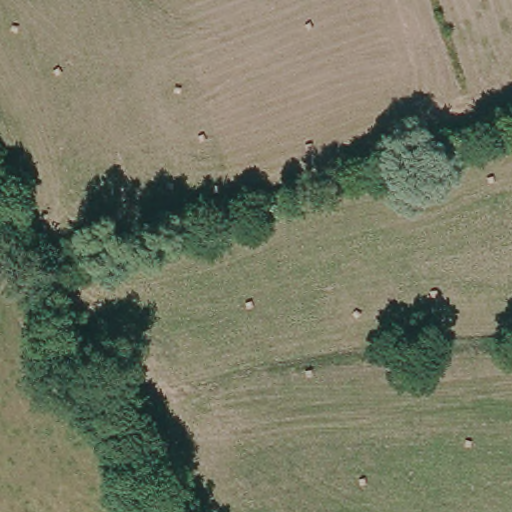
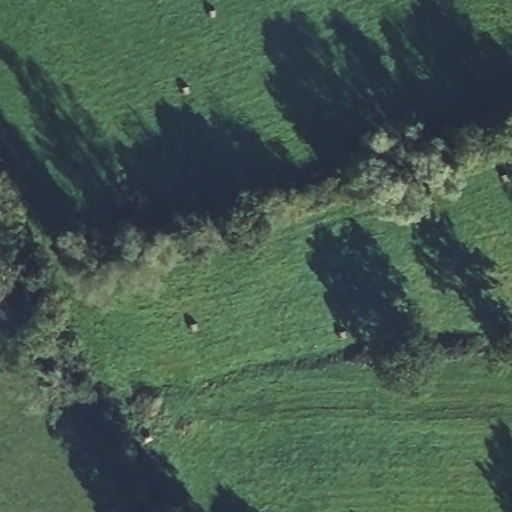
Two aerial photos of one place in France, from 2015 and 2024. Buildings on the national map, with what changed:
[]

